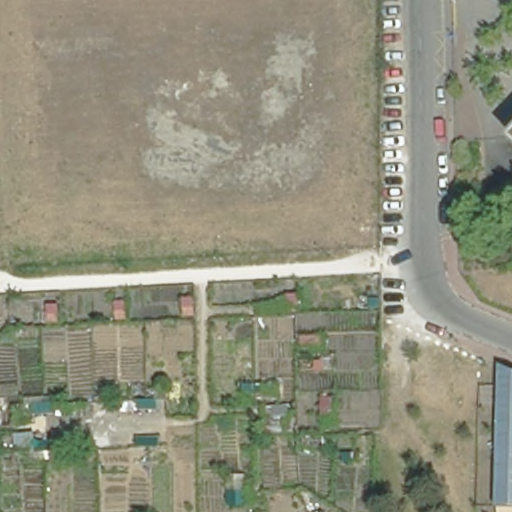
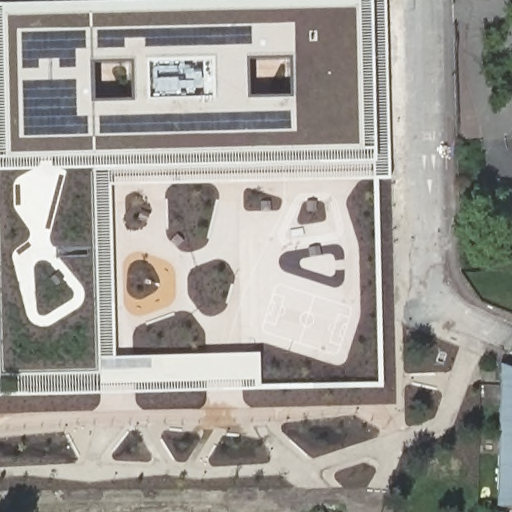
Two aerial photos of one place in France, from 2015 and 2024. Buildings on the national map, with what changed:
new [(0,4),(180,0),(371,0),(373,161),(87,169),(96,358),(97,373),(0,374),(0,4)]
new [(258,353),(259,381),(97,384),(97,373),(96,358),(258,353)]
unchanged [(499,505),(501,365),(512,369),(512,505),(499,505)]
unchanged [(37,447),(57,446),(57,461),(35,462),(35,455),(16,456),(14,434),(37,434),(37,447)]

